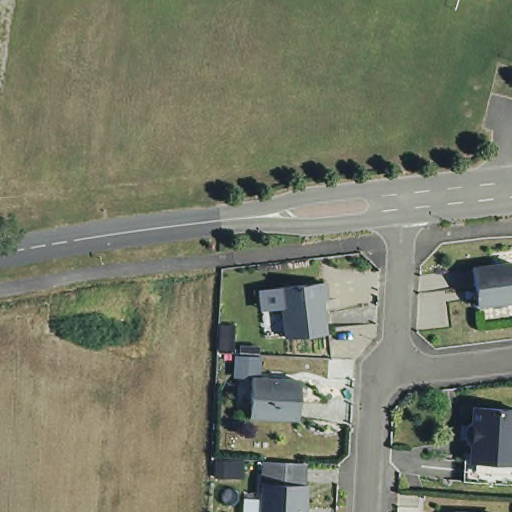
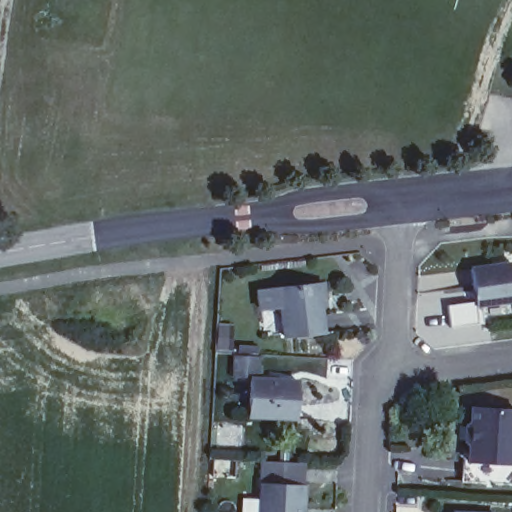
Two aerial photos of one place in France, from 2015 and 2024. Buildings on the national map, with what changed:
unchanged [(512,301),(477,306),(472,268),(512,264),(512,301)]
unchanged [(323,282),(325,300),(320,300),(323,332),(284,337),(279,287),(323,282)]
unchanged [(298,381),(296,418),(249,416),(251,378),(298,381)]
unchanged [(472,387),(512,389),(512,444),(491,443),(469,442),(472,387)]
unchanged [(491,443),(512,444),(512,465),(462,462),(464,442),(469,442),(491,443)]
unchanged [(298,458),(297,481),(301,481),(299,497),(299,512),(255,512),(258,457),(298,458)]
unchanged [(496,510),(496,512),(453,512),(454,508),(496,510)]

